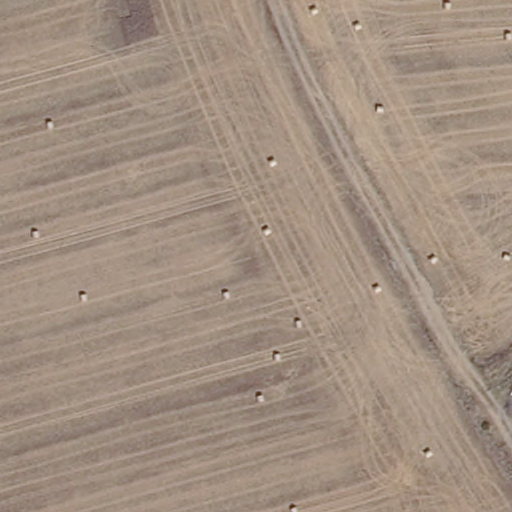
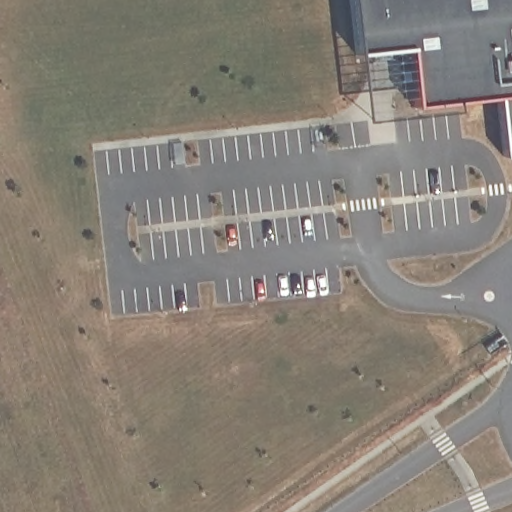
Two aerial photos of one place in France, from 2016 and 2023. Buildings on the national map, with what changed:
new [(503,152),(495,93),(409,102),(404,50),(354,51),(351,0),(512,0),(512,152),(503,152)]

